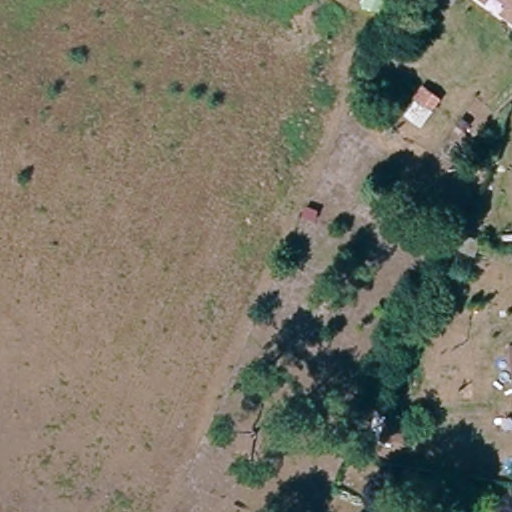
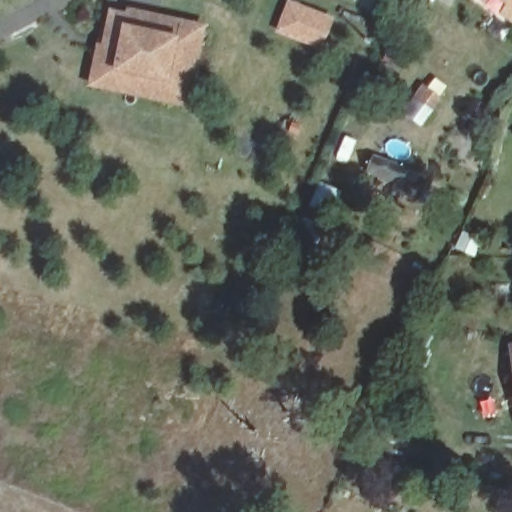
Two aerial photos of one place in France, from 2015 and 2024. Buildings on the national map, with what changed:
new [(275,32),(288,0),(291,0),(336,17),(323,50),(275,32)]
unchanged [(485,0),(512,0),(512,20),(485,0)]
new [(101,41),(111,43),(112,37),(107,36),(114,5),(131,9),(131,4),(206,19),(190,97),(166,92),(169,73),(121,64),(119,76),(95,72),(101,41)]
new [(95,72),(119,76),(121,64),(169,73),(166,92),(94,78),(95,72)]
unchanged [(463,231),(476,237),(469,253),(456,246),(463,231)]
unchanged [(511,343),(512,343),(512,354),(511,343)]

